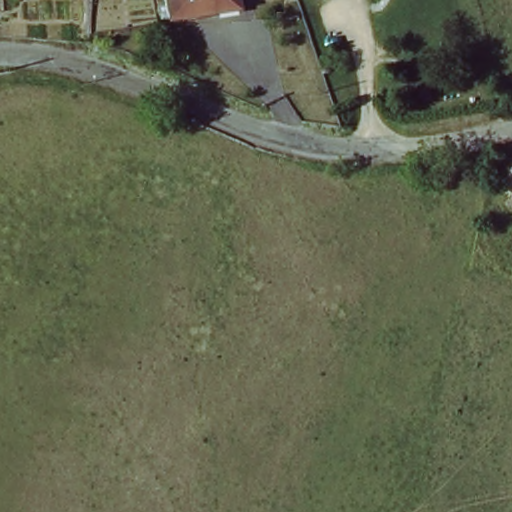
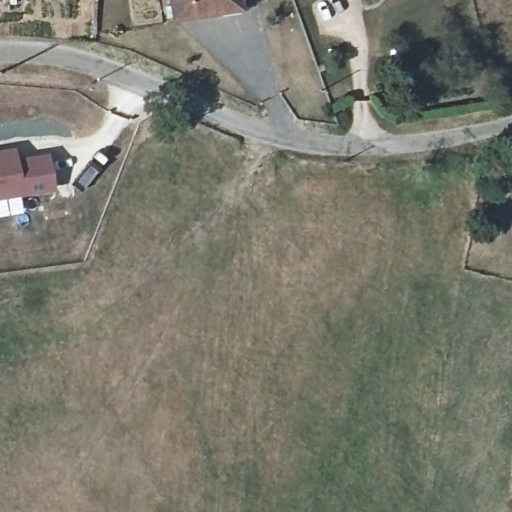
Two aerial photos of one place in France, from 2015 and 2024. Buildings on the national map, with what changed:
unchanged [(172,0),(243,0),(177,18),(172,0)]
new [(17,146),(19,156),(50,153),(55,190),(0,199),(0,149),(17,146)]

